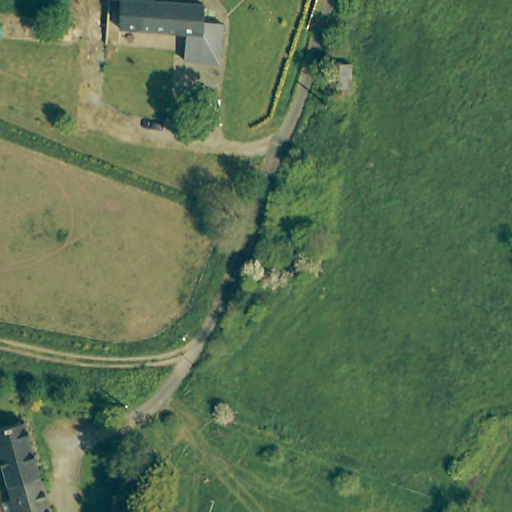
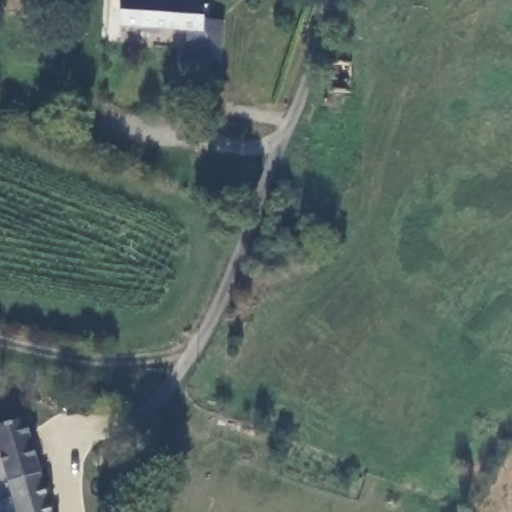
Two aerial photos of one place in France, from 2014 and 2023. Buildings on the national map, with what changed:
unchanged [(120,23),(120,5),(120,0),(162,0),(160,36),(119,33),(120,23)]
unchanged [(204,21),(225,22),(221,64),(184,60),(186,39),(187,38),(160,36),(162,0),(179,0),(205,1),(204,21)]
unchanged [(350,90),(342,90),(343,94),(342,97),(340,100),(336,101),(332,100),(330,99),(328,95),(328,92),(323,92),(323,60),(327,60),(342,60),(350,61),(350,90)]
unchanged [(0,452),(0,424),(1,423),(24,415),(49,512),(17,512),(0,452)]

